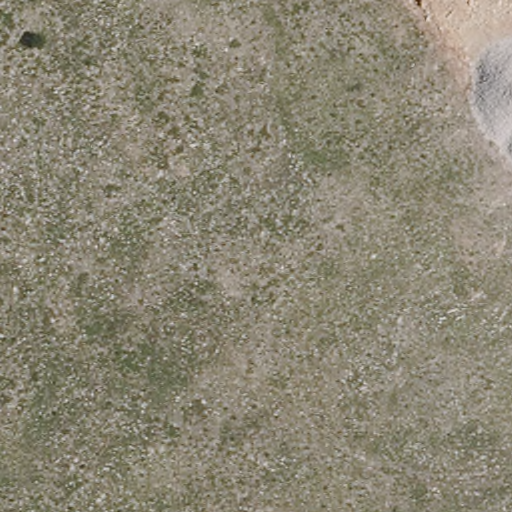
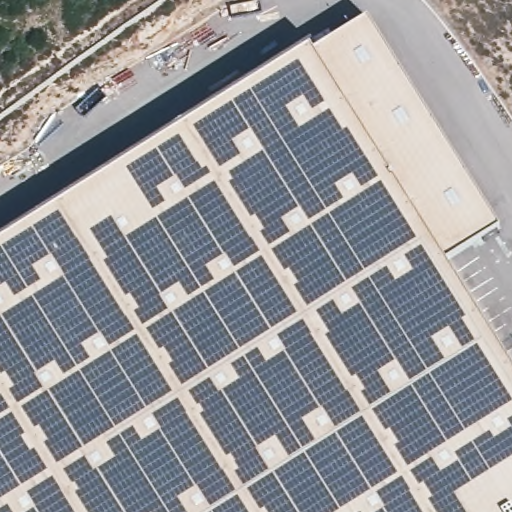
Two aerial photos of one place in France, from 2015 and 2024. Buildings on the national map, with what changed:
new [(314,53),(368,15),(501,226),(445,264),(512,368),(512,512),(0,512),(0,241),(310,45),(314,53)]

